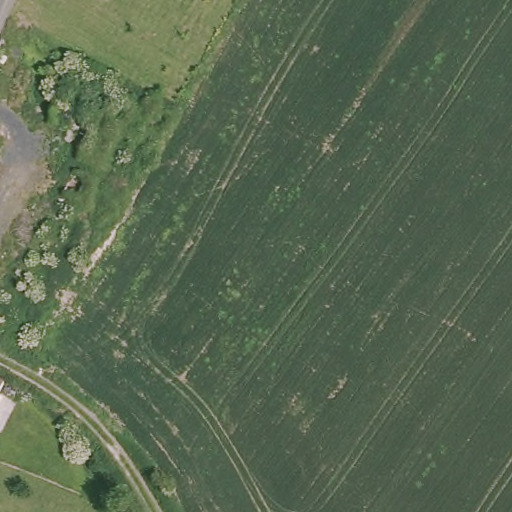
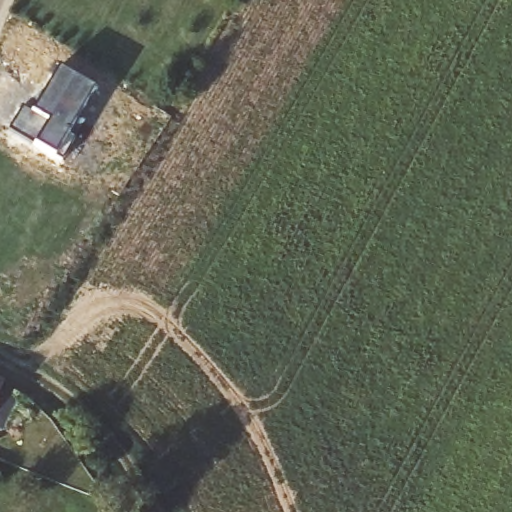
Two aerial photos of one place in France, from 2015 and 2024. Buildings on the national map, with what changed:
new [(31,115),(57,69),(92,89),(65,134),(73,139),(60,161),(52,156),(35,144),(9,129),(21,109),(31,115)]
demolished [(9,126),(0,148),(0,122),(9,126)]
demolished [(62,195),(70,178),(90,187),(83,204),(62,195)]
unchanged [(2,385),(0,389),(0,384),(2,385)]

